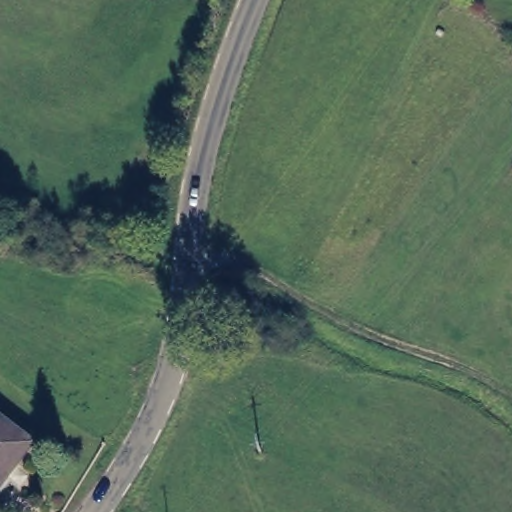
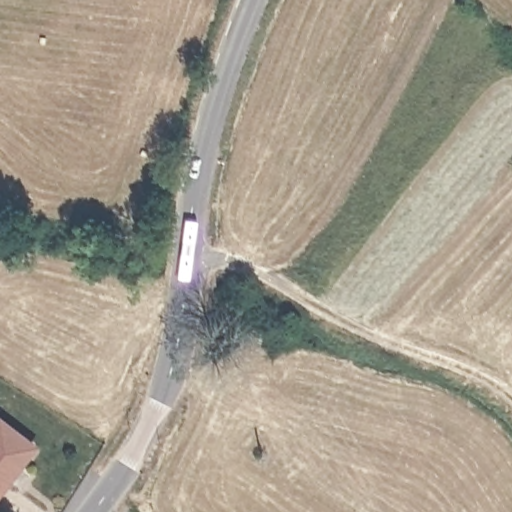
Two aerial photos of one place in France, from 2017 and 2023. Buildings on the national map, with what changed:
unchanged [(30,446),(0,484),(0,424),(30,446)]

